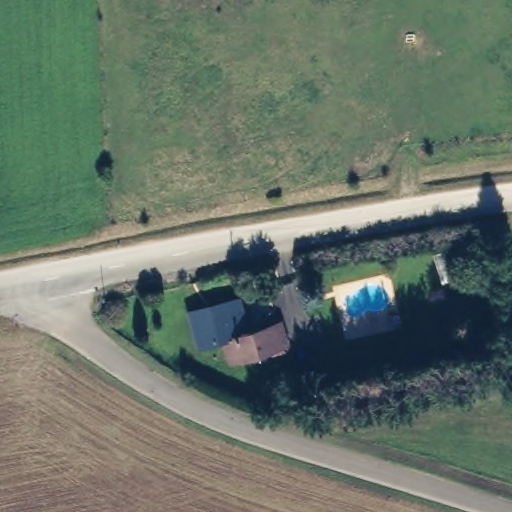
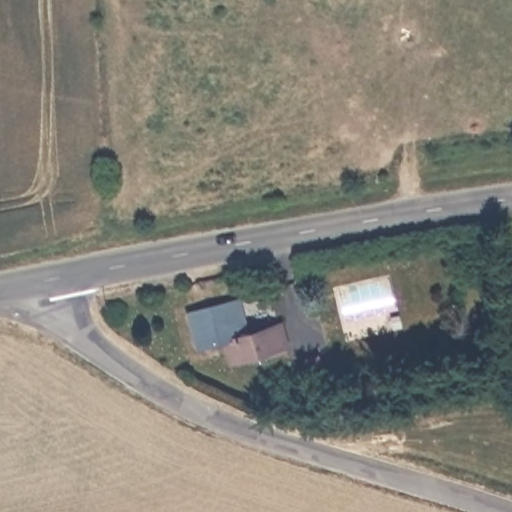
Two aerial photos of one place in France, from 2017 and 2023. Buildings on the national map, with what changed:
unchanged [(242,299),(247,327),(287,319),(295,359),(273,364),(272,355),(228,364),(224,341),(200,346),(192,309),(242,299)]

